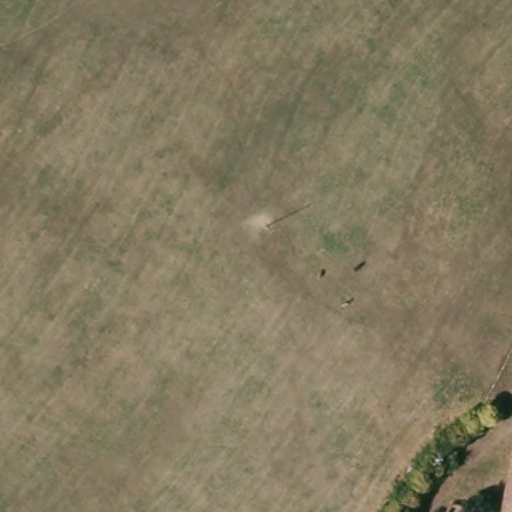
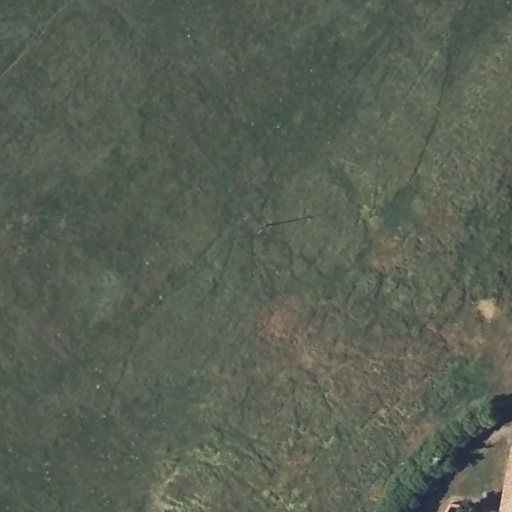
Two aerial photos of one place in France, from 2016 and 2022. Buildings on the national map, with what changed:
unchanged [(512,491),(512,512),(507,512),(512,491)]

